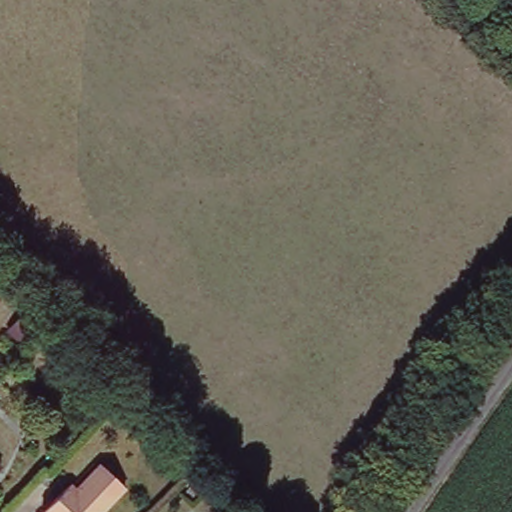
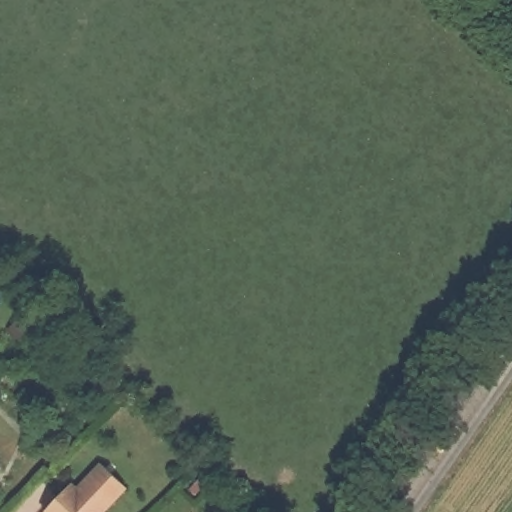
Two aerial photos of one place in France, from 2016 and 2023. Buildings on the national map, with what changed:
unchanged [(125,486),(101,512),(44,512),(71,485),(76,490),(101,465),(125,486)]
unchanged [(0,474),(0,471),(1,472),(0,474)]

